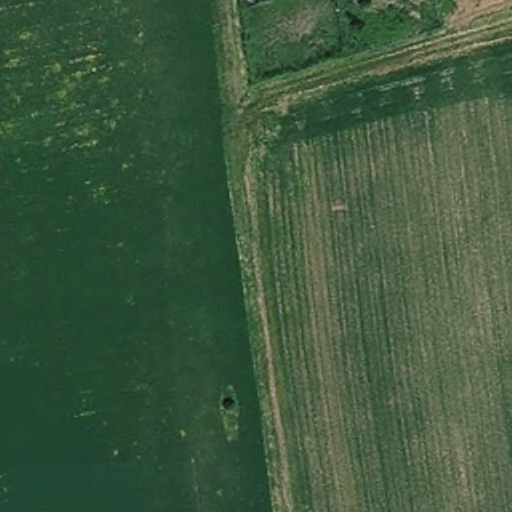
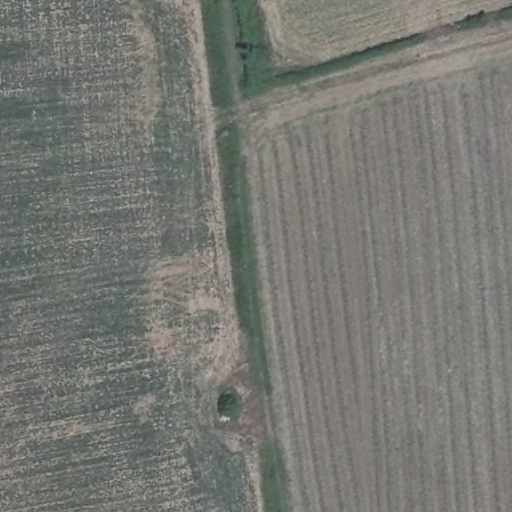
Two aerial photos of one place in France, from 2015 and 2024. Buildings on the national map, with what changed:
[]

